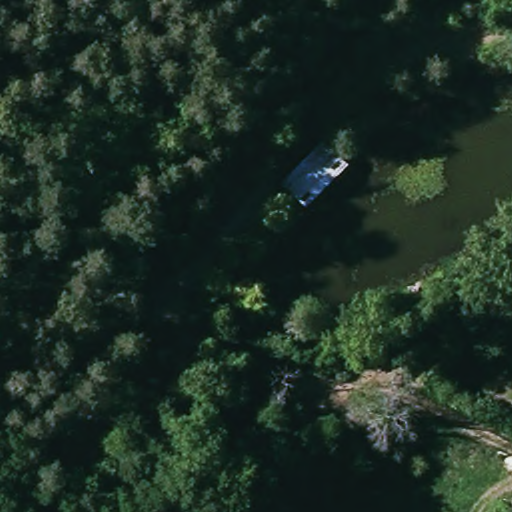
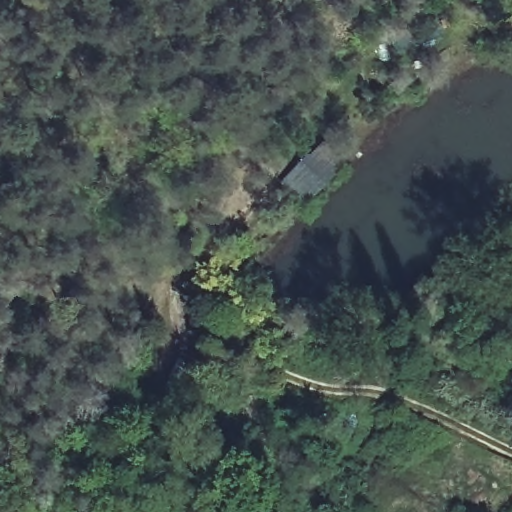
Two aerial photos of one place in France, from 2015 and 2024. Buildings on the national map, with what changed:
unchanged [(345,159),(298,202),(281,177),(322,139),(345,159)]

